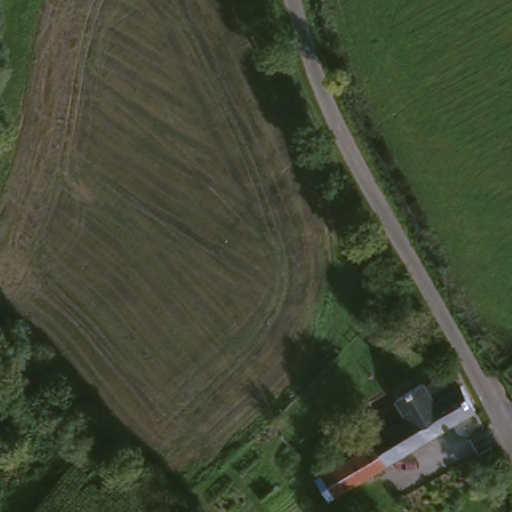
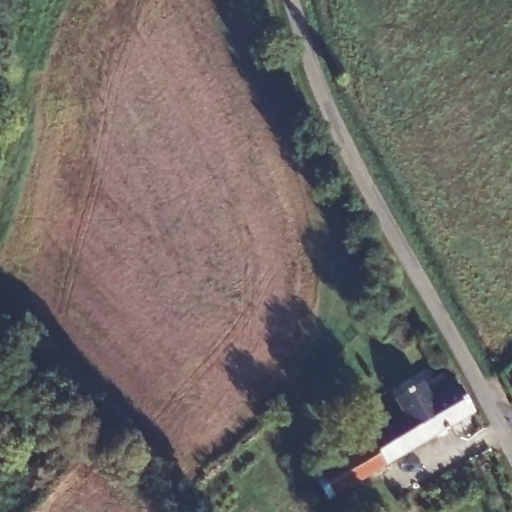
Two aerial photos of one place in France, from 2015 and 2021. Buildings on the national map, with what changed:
unchanged [(474,406),(387,462),(375,441),(373,436),(378,432),(431,399),(421,378),(446,364),(452,376),(456,374),(474,406)]
unchanged [(431,399),(378,432),(370,417),(394,402),(389,392),(419,375),(421,378),(431,399)]
unchanged [(329,499),(318,478),(375,441),(387,462),(329,499)]

